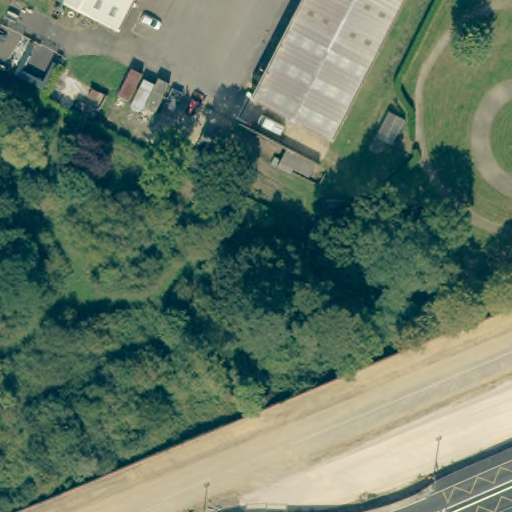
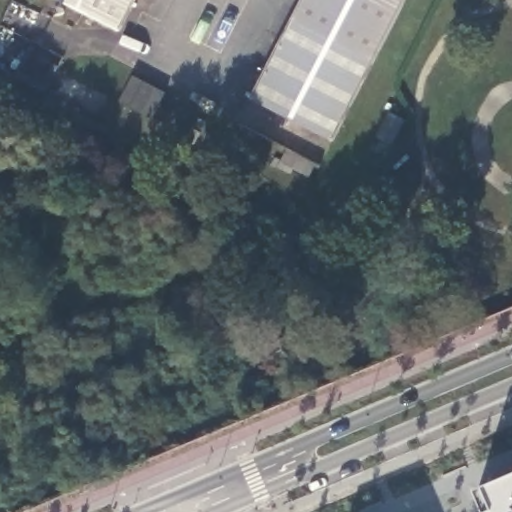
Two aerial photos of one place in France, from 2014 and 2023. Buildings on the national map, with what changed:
unchanged [(134,0),(119,30),(62,0),(134,0)]
unchanged [(303,0),(405,0),(333,140),(253,98),(303,0)]
unchanged [(4,62),(3,61),(1,60),(0,59),(0,47),(1,46),(2,45),(4,44),(6,43),(8,43),(10,43),(11,44),(13,45),(14,46),(16,48),(16,49),(16,52),(17,53),(16,55),(16,57),(15,59),(14,60),(12,61),(11,62),(8,62),(6,62),(4,62)]
unchanged [(35,82),(34,81),(31,80),(30,79),(29,77),(29,76),(28,74),(28,72),(29,70),(30,67),(31,66),(32,65),(34,64),(35,62),(37,62),(38,62),(39,62),(41,62),(43,64),(44,64),(46,66),(46,67),(48,69),(48,71),(48,73),(48,75),(47,77),(46,79),(45,80),(43,81),(41,82),(39,82),(37,82),(35,82)]
new [(478,490),(512,476),(512,512),(487,512),(478,490)]

